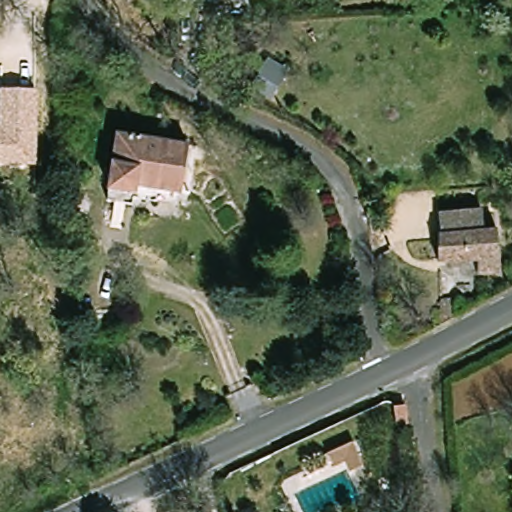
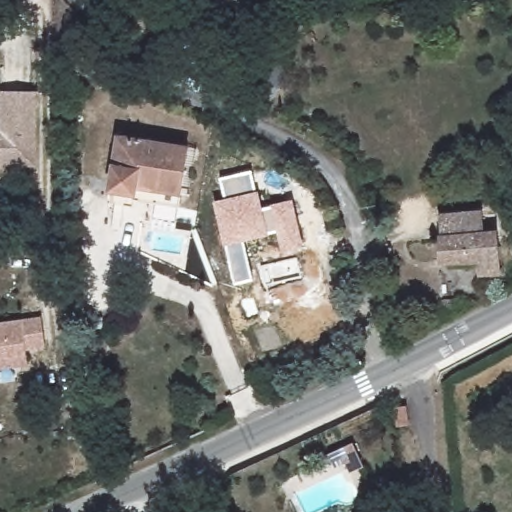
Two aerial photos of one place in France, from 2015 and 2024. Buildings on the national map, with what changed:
unchanged [(238,80),(218,71),(228,49),(248,58),(238,80)]
unchanged [(35,166),(0,166),(0,91),(37,90),(35,166)]
unchanged [(138,193),(114,192),(116,129),(183,132),(183,180),(183,195),(138,193)]
new [(224,199),(219,177),(251,170),(256,190),(258,191),(262,207),(271,205),(270,204),(293,199),(304,246),(282,252),(277,231),(268,233),(268,235),(243,241),(253,279),(234,283),(226,245),(224,245),(213,201),(224,199)]
unchanged [(481,259),(448,260),(448,256),(418,255),(417,237),(442,238),(442,210),(483,210),(483,218),(486,218),(486,231),(504,232),(504,242),(512,242),(512,258),(506,258),(507,273),(482,274),(481,259)]
unchanged [(457,290),(457,309),(441,316),(442,290),(457,290)]
new [(35,355),(16,358),(18,373),(0,375),(0,330),(31,326),(35,355)]
unchanged [(359,442),(365,467),(348,471),(344,461),(328,464),(324,450),(359,442)]

